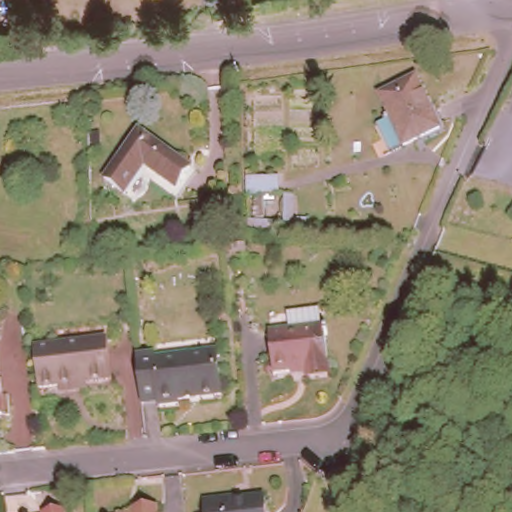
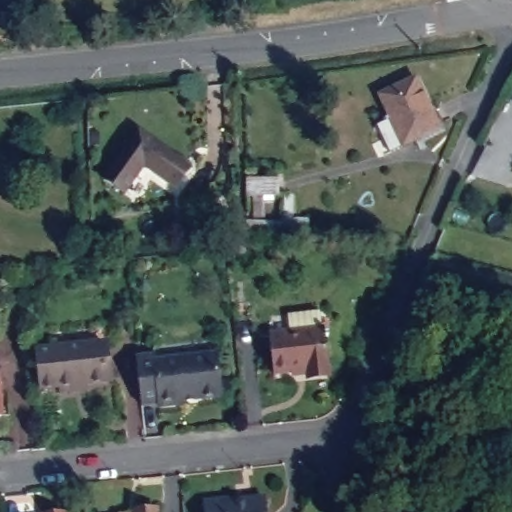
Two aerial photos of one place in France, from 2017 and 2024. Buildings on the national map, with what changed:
unchanged [(425,80),(443,134),(406,148),(391,153),(381,124),(396,119),(387,94),(425,80)]
unchanged [(140,125),(194,163),(179,183),(146,161),(127,187),(106,173),(140,125)]
unchanged [(299,335),(297,320),(321,317),(321,314),(328,313),(330,331),(333,331),(337,377),(314,380),(314,375),(282,378),(278,338),(299,335)]
unchanged [(80,389),(64,391),(63,385),(44,387),(39,348),(104,341),(108,381),(91,383),(91,388),(80,389)]
unchanged [(154,349),(155,355),(218,349),(223,390),(179,393),(179,399),(160,401),(159,397),(141,398),(136,351),(154,349)]
unchanged [(3,415),(0,416),(0,394),(3,415)]
unchanged [(235,499),(267,495),(269,512),(209,512),(208,500),(235,496),(235,499)]
unchanged [(139,508),(161,506),(161,512),(127,512),(127,510),(139,508)]
unchanged [(68,512),(53,512),(68,510),(68,512)]

